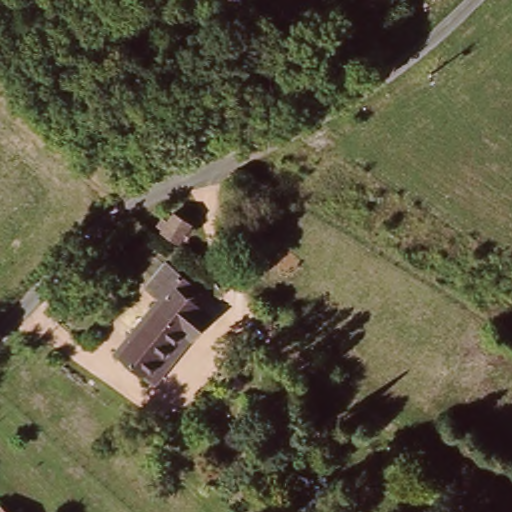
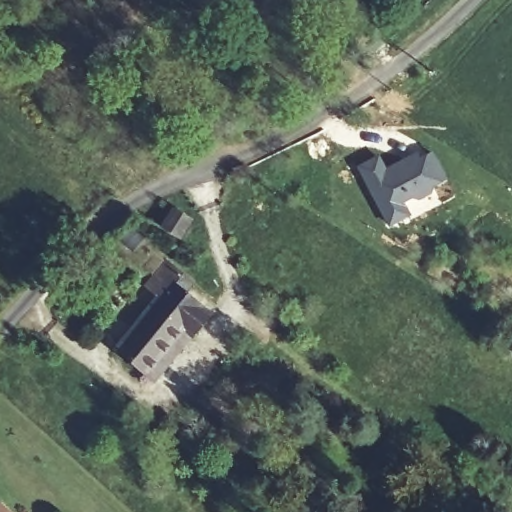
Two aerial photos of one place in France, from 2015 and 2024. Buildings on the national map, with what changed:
new [(385,166),(416,150),(419,156),(424,154),(425,155),(432,151),(446,179),(433,185),(431,192),(419,200),(412,196),(404,201),(411,215),(388,227),(355,166),(379,154),(385,166)]
demolished [(191,215),(182,231),(159,219),(168,201),(191,215)]
new [(188,227),(179,244),(156,231),(165,214),(188,227)]
unchanged [(159,376),(128,349),(171,297),(157,285),(175,262),(203,285),(194,297),(220,320),(202,341),(166,383),(159,376)]
demolished [(17,505),(24,512),(7,512),(10,510),(17,505)]
unchanged [(4,512),(1,512),(3,510),(4,512)]

